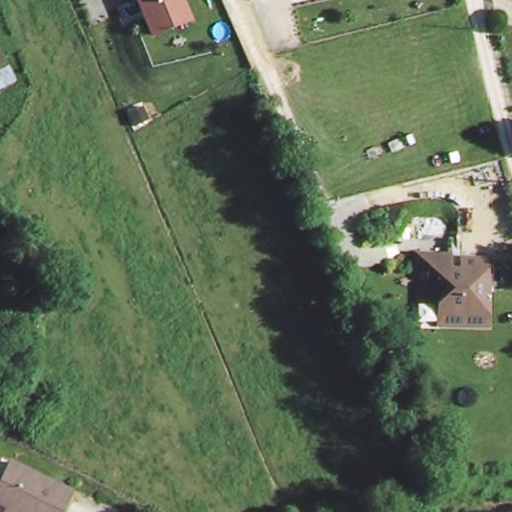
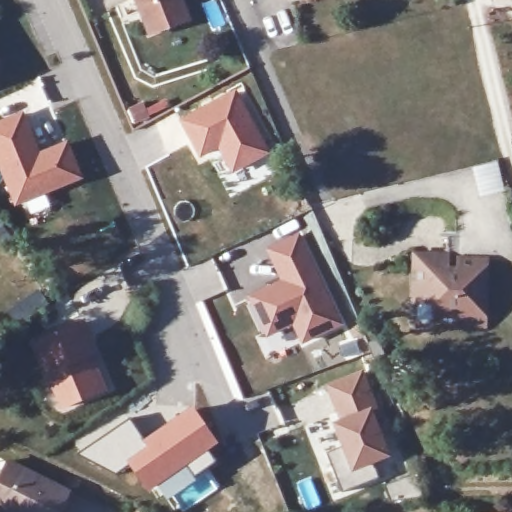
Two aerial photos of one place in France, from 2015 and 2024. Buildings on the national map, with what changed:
unchanged [(185,17),(145,31),(135,0),(179,0),(185,17)]
new [(232,175),(217,150),(200,159),(180,121),(236,90),(268,150),(232,175)]
new [(142,101),(146,107),(163,97),(168,108),(134,125),(126,109),(142,101)]
new [(41,150),(67,138),(83,179),(45,195),(50,207),(30,215),(25,204),(14,208),(0,174),(0,119),(23,110),(41,150)]
new [(320,275),(315,277),(339,325),(301,344),(293,326),(266,340),(247,297),(281,280),(266,250),(300,233),(320,275)]
unchanged [(442,310),(418,308),(417,261),(445,262),(446,275),(460,276),(460,267),(485,268),(486,333),(442,332),(442,310)]
new [(93,341),(90,341),(95,356),(93,357),(107,390),(60,411),(32,343),(85,321),(93,341)]
new [(365,387),(370,385),(380,410),(375,412),(390,457),(372,465),(377,478),(342,493),(327,455),(342,447),(333,424),(340,421),(326,386),(357,372),(365,387)]
new [(147,445),(142,438),(191,404),(219,442),(208,451),(215,461),(167,500),(157,487),(147,493),(128,465),(125,462),(147,445)]
new [(128,417),(142,438),(147,445),(125,462),(128,465),(115,475),(78,452),(128,417)]
unchanged [(68,487),(58,512),(0,512),(0,478),(8,460),(68,487)]

